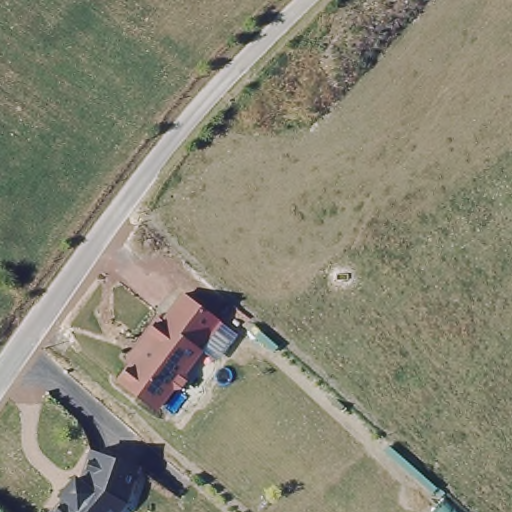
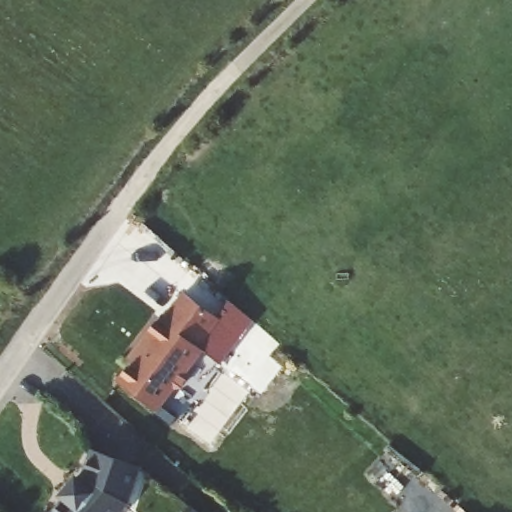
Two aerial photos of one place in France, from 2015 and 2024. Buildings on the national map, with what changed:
unchanged [(117,384),(132,365),(134,366),(143,353),(142,352),(150,341),(146,338),(159,321),(163,324),(183,297),(217,323),(197,350),(202,353),(185,377),(186,385),(181,392),(173,392),(160,410),(140,396),(138,399),(117,384)]
unchanged [(67,502),(63,499),(78,482),(82,485),(85,482),(94,456),(141,472),(129,508),(125,512),(58,512),(67,502)]

